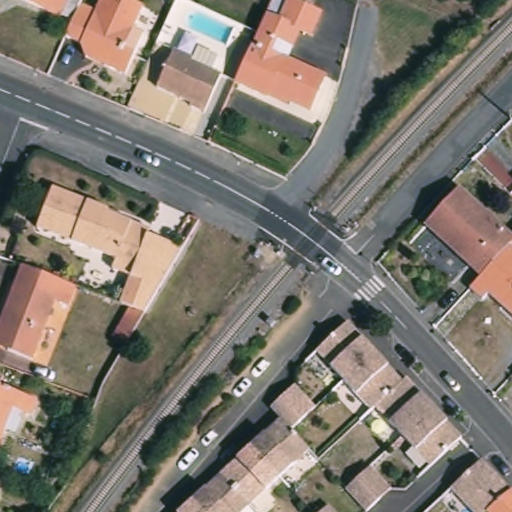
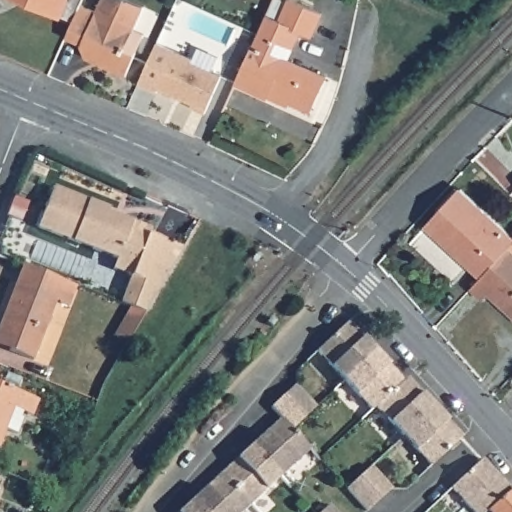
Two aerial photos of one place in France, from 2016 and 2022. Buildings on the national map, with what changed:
unchanged [(67,38),(74,22),(54,13),(26,0),(84,0),(81,8),(97,14),(102,0),(126,0),(143,8),(132,30),(145,36),(126,76),(105,67),(87,58),(82,45),(67,38)]
unchanged [(315,34),(306,31),(293,59),(332,77),(315,111),(273,92),(271,97),(239,81),(261,33),(270,14),(276,0),(298,0),(325,13),(315,34)]
unchanged [(176,51),(194,60),(193,63),(221,76),(203,114),(192,110),(194,104),(158,88),(176,51)]
unchanged [(136,309),(125,304),(136,278),(118,270),(122,260),(43,228),(59,188),(115,210),(113,213),(156,230),(154,236),(189,250),(150,314),(129,346),(117,340),(136,309)]
unchanged [(461,193),(512,240),(512,248),(482,282),(426,232),(461,193)]
unchanged [(482,282),(512,248),(512,320),(476,288),(482,282)]
unchanged [(24,270),(77,292),(69,311),(56,306),(32,365),(9,355),(0,352),(0,331),(24,270)]
unchanged [(379,353),(378,353),(348,382),(320,353),(320,352),(350,324),(379,353)]
unchanged [(348,382),(378,353),(379,353),(407,382),(379,408),(375,411),(348,382)]
unchanged [(379,408),(407,382),(411,379),(439,408),(407,438),(379,408)]
unchanged [(250,448),(267,432),(280,420),(269,409),(271,408),(282,398),(285,394),(294,386),(315,408),(304,419),(303,420),(292,431),(302,442),(310,451),(279,479),(250,448)]
unchanged [(37,404),(31,421),(11,414),(0,442),(0,389),(37,404)]
unchanged [(407,438),(439,408),(466,437),(435,466),(407,438)]
unchanged [(249,507),(220,476),(228,469),(250,448),(279,479),(249,507)]
unchanged [(481,465),(492,476),(510,496),(492,512),(468,512),(450,493),(481,465)]
unchanged [(376,467),(395,490),(383,501),(371,512),(350,489),(363,479),(376,467)]
unchanged [(199,512),(191,503),(211,485),(220,476),(249,507),(243,512),(199,512)]
unchanged [(512,512),(492,512),(510,496),(512,499),(512,512)]
unchanged [(343,512),(322,512),(333,501),(343,512)]
unchanged [(191,503),(199,512),(181,512),(188,506),(191,503)]

